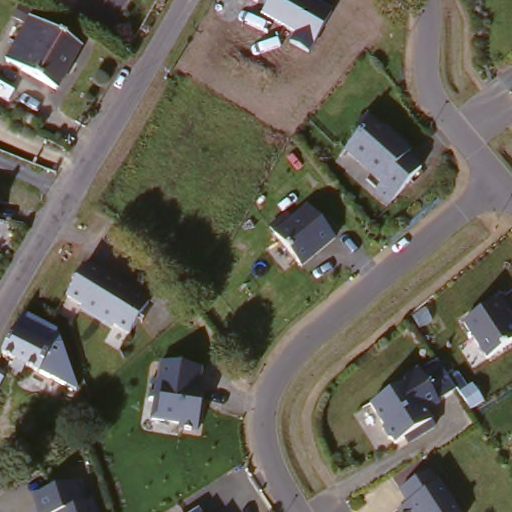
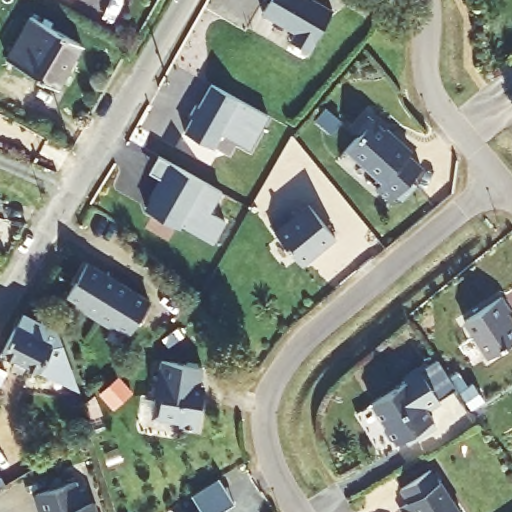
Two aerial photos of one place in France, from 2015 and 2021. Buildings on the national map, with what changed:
unchanged [(311,52),(293,42),(298,32),(263,14),(270,0),(319,0),(334,8),(311,52)]
unchanged [(50,97),(0,68),(0,67),(26,26),(74,56),(50,97)]
new [(216,91),(272,122),(254,155),(226,140),(218,155),(189,139),(216,91)]
unchanged [(423,165),(390,199),(338,156),(370,120),(423,165)]
new [(168,185),(154,177),(164,161),(226,198),(214,219),(229,228),(216,250),(184,230),(183,234),(150,215),(168,185)]
unchanged [(309,201),(336,233),(298,262),(273,231),(309,201)]
unchanged [(129,335),(66,299),(86,266),(148,301),(129,335)]
unchanged [(486,356),(464,321),(498,298),(512,321),(512,343),(486,356)]
unchanged [(4,348),(16,325),(18,325),(26,311),(56,330),(67,364),(76,391),(58,380),(4,348)]
unchanged [(196,421),(154,420),(160,362),(204,366),(196,421)]
unchanged [(430,412),(436,423),(396,443),(373,406),(420,375),(439,403),(430,412)]
unchanged [(436,467),(465,512),(409,512),(396,493),(436,467)]
unchanged [(76,481),(84,503),(92,501),(96,512),(37,512),(31,493),(76,481)]

